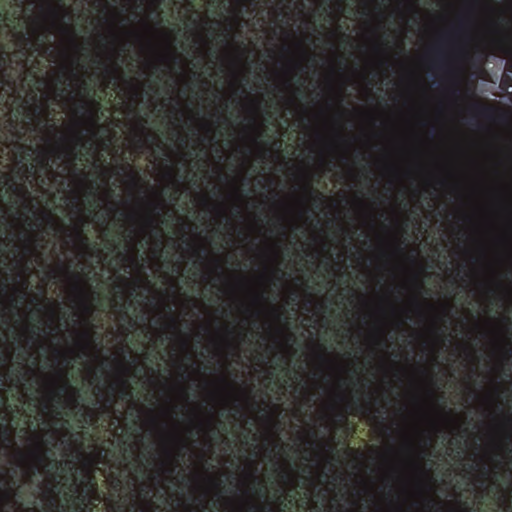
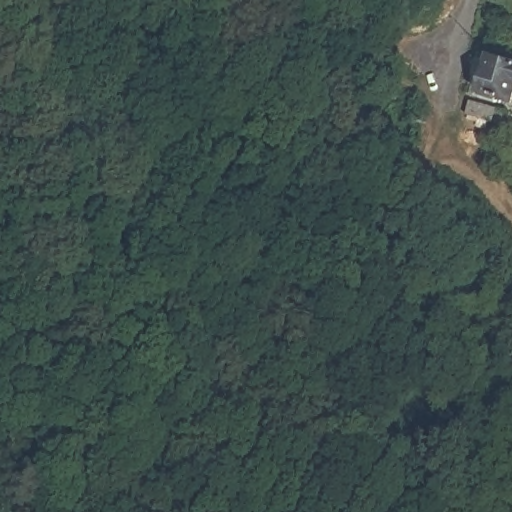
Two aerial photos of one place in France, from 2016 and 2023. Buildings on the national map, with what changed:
unchanged [(499,68),(486,64),(495,30),(512,36),(512,73),(499,68)]
unchanged [(512,93),(512,100),(510,105),(500,103),(470,93),(473,81),(512,93)]

